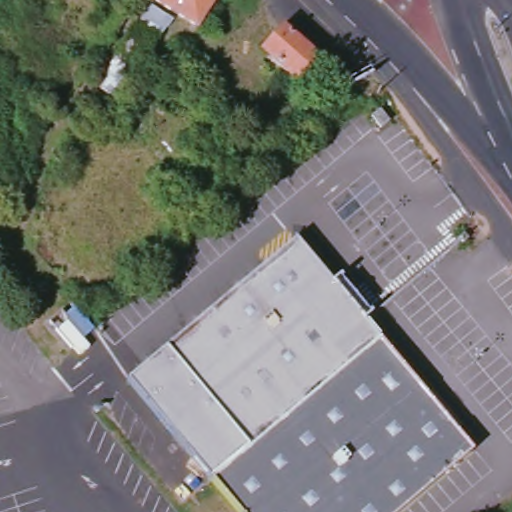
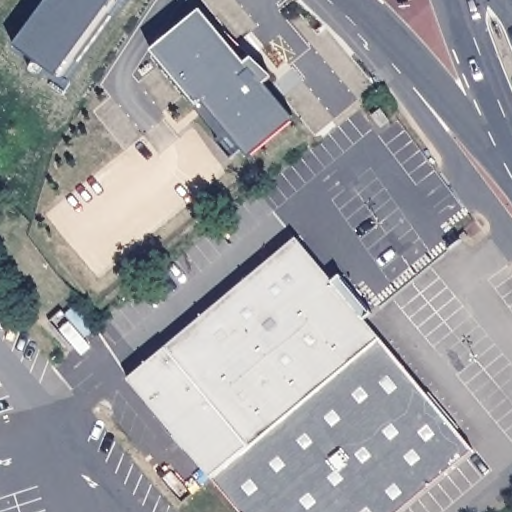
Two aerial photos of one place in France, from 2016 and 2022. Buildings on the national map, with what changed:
new [(14,42),(45,0),(111,0),(56,76),(14,42)]
demolished [(165,0),(218,0),(201,25),(165,0)]
demolished [(174,14),(159,36),(158,35),(141,62),(125,50),(156,2),(174,14)]
new [(246,65),(253,59),(272,77),(264,84),(295,119),(251,157),(243,149),(232,158),(218,142),(221,139),(196,110),(199,106),(153,51),(202,10),(246,65)]
demolished [(261,50),(281,27),(314,57),(294,80),(261,50)]
demolished [(249,110),(259,119),(262,116),(277,130),(264,145),(239,122),(249,110)]
unchanged [(381,110),(390,122),(381,127),(373,116),(381,110)]
unchanged [(464,242),(463,240),(461,239),(467,234),(468,235),(470,237),(464,242)]
unchanged [(213,479),(128,378),(296,238),(334,282),(341,276),(373,314),(365,321),(379,338),(374,342),(213,479)]
unchanged [(374,342),(379,338),(427,394),(429,392),(441,406),(442,412),(449,416),(460,430),(458,431),(474,451),(400,512),(240,512),(213,479),(374,342)]

